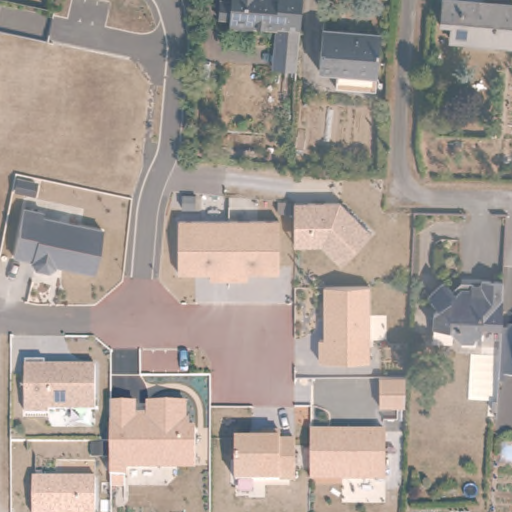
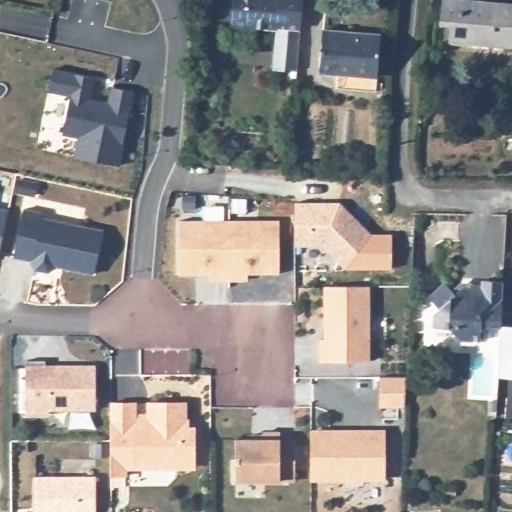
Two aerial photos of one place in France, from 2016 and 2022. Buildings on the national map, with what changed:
unchanged [(231,11),(232,0),(303,0),(299,40),(276,37),(276,40),(253,37),(252,40),(228,37),(228,30),(217,30),(220,10),(231,11)]
unchanged [(450,39),(450,25),(440,22),(442,0),(464,0),(512,5),(512,41),(511,46),(450,39)]
unchanged [(375,91),(335,88),(336,74),(319,70),(323,30),(379,34),(375,91)]
new [(66,95),(46,90),(51,68),(93,76),(89,97),(107,100),(109,85),(133,90),(118,164),(71,155),(76,136),(59,133),(66,95)]
unchanged [(322,248),(293,247),(294,204),(339,205),(369,235),(340,268),(322,248)]
unchanged [(102,230),(92,274),(52,267),(44,273),(33,271),(29,262),(11,259),(20,209),(102,230)]
unchanged [(248,273),(247,282),(208,282),(208,276),(175,275),(176,221),(279,222),(278,276),(248,273)]
unchanged [(487,316),(485,331),(465,330),(454,318),(438,317),(438,302),(441,298),(433,287),(450,272),(460,282),(466,279),(475,280),(476,275),(486,276),(487,270),(507,272),(505,317),(487,316)]
unchanged [(368,290),(368,363),(317,365),(317,340),(323,340),(323,289),(368,290)]
unchanged [(94,365),(96,409),(23,413),(23,365),(94,365)]
new [(379,377),(405,377),(404,407),(379,407),(379,377)]
unchanged [(136,403),(136,415),(145,414),(145,402),(188,402),(189,426),(195,427),(195,470),(126,468),(126,477),(110,479),(110,403),(136,403)]
unchanged [(382,431),(384,480),(309,482),(310,431),(382,431)]
unchanged [(294,442),(293,481),(234,482),(235,440),(294,442)]
unchanged [(95,512),(32,512),(32,477),(95,478),(95,512)]

